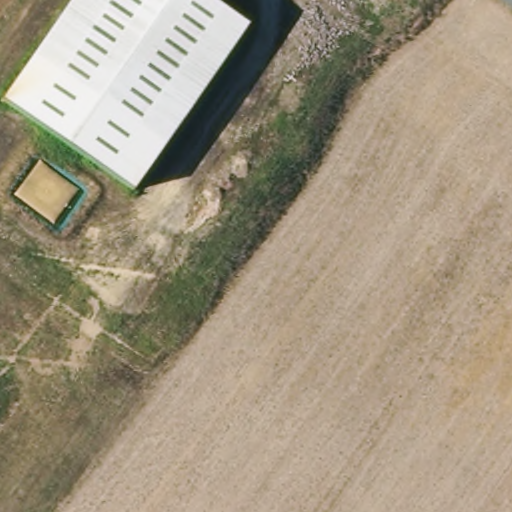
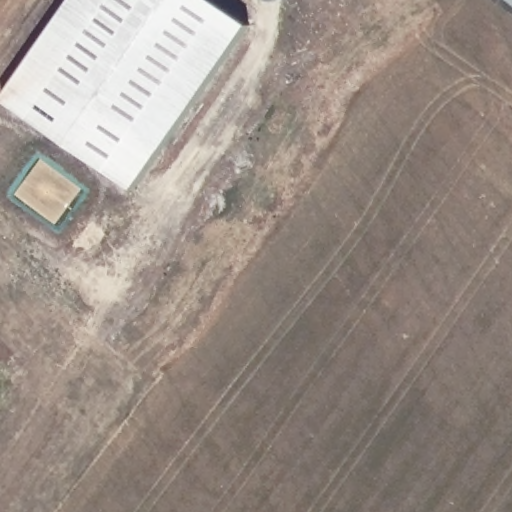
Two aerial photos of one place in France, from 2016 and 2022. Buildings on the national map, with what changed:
unchanged [(71,0),(213,0),(249,24),(135,190),(3,99),(71,0)]

